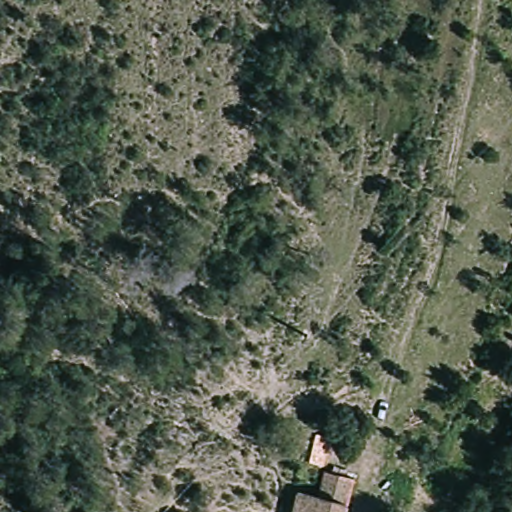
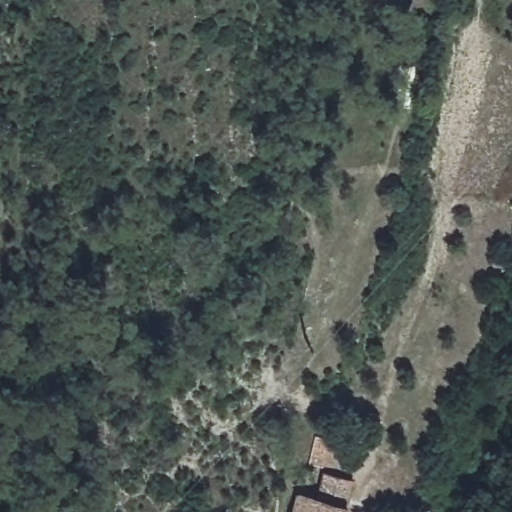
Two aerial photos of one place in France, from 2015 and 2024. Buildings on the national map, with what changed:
unchanged [(293,512),(297,494),(319,498),(325,471),(352,476),(347,504),(347,507),(346,512),(293,512)]

